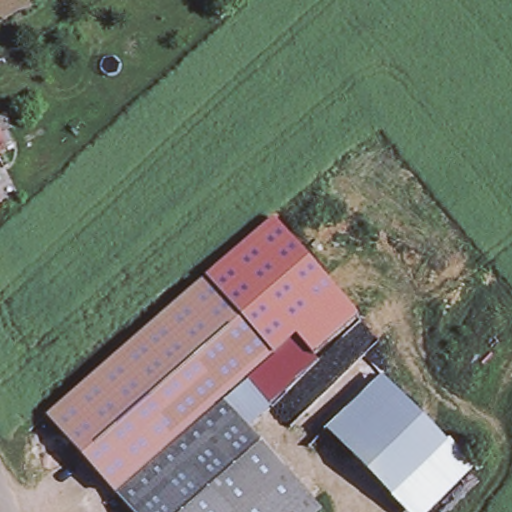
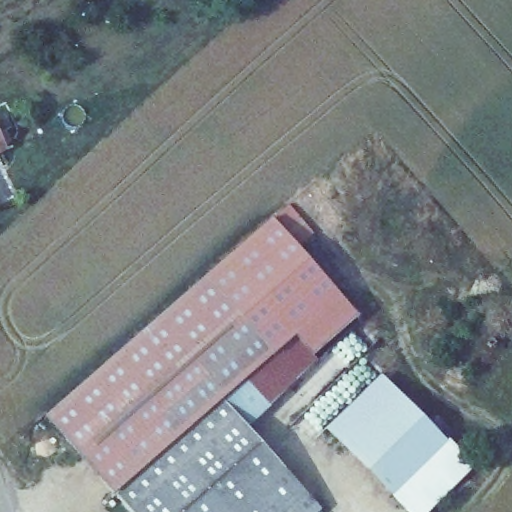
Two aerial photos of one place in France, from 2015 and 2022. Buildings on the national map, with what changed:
unchanged [(312,355),(320,364),(288,393),(263,367),(260,361),(270,351),(203,275),(274,217),(358,314),(312,355)]
unchanged [(203,275),(270,351),(118,484),(111,491),(44,414),(203,275)]
unchanged [(242,388),(257,373),(263,367),(288,393),(281,400),(264,414),(249,428),(322,510),(320,512),(121,512),(112,503),(225,402),(242,388)]
unchanged [(387,377),(480,470),(460,489),(437,512),(415,512),(333,430),(374,391),(387,377)]

